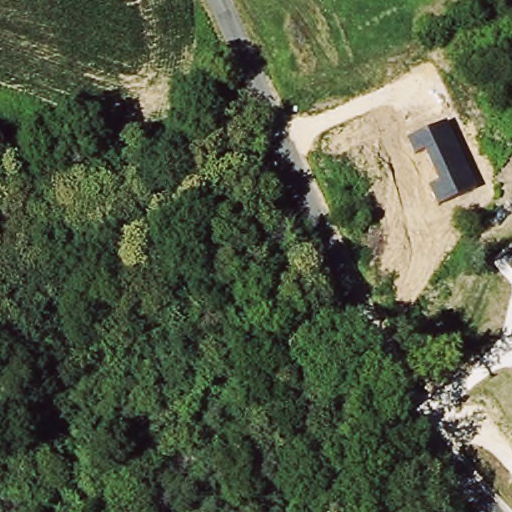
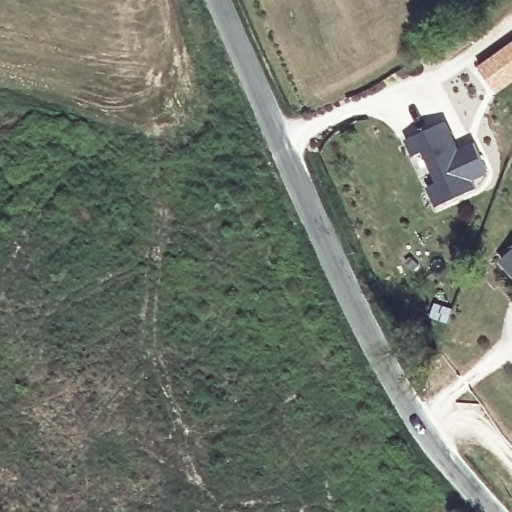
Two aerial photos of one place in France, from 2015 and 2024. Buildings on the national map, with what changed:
new [(512,82),(498,92),(479,67),(512,44),(512,82)]
unchanged [(476,190),(439,207),(430,188),(438,184),(425,152),(414,157),(407,140),(446,122),(476,190)]
unchanged [(512,250),(512,273),(500,260),(512,250)]

